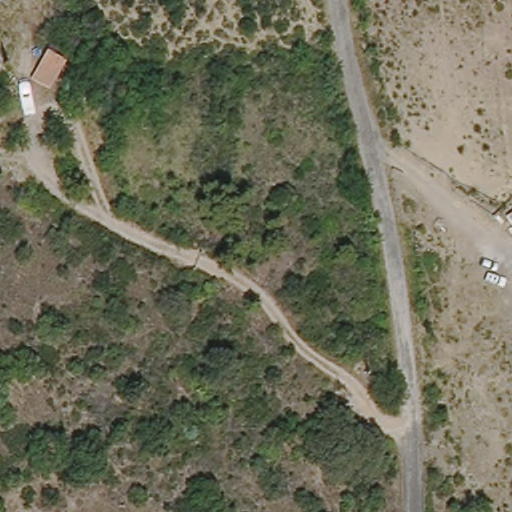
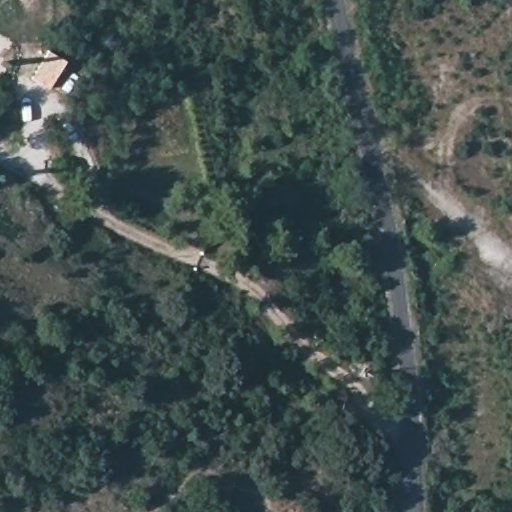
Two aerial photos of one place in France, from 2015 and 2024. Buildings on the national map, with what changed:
unchanged [(50,85),(30,76),(45,45),(63,55),(66,58),(63,63),(50,85)]

